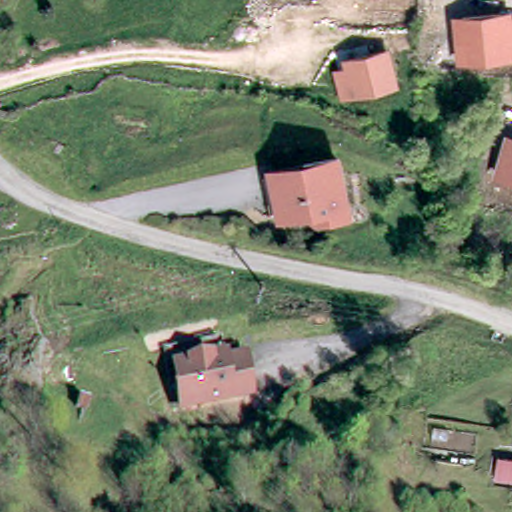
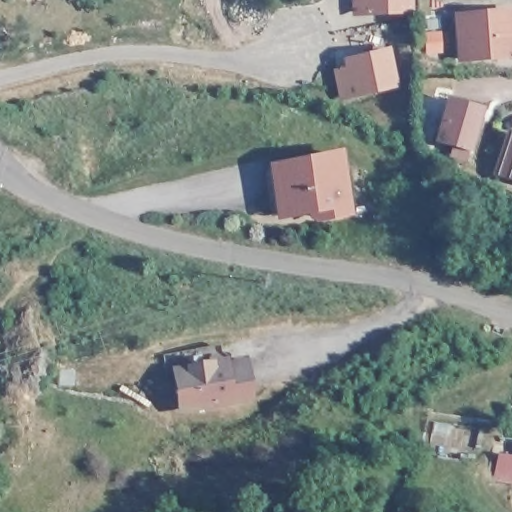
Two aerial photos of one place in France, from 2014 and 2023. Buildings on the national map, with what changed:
new [(415,12),(352,15),(351,0),(415,0),(415,12)]
unchanged [(457,64),(452,14),(512,8),(512,59),(457,64)]
unchanged [(342,59),(389,48),(399,90),(341,104),(333,72),(345,68),(342,59)]
new [(484,106),(472,151),(435,142),(446,97),(484,106)]
unchanged [(492,178),(506,129),(512,132),(512,184),(492,178)]
unchanged [(319,224),(317,221),(316,218),(316,217),(286,222),(278,180),(276,173),(312,166),(344,160),(354,220),(333,224),(322,226),(319,224)]
unchanged [(186,415),(180,383),(179,379),(173,380),(169,363),(223,354),(226,368),(226,372),(246,369),(252,403),(195,413),(186,415)]
unchanged [(494,486),(497,459),(512,461),(512,488),(494,486)]

